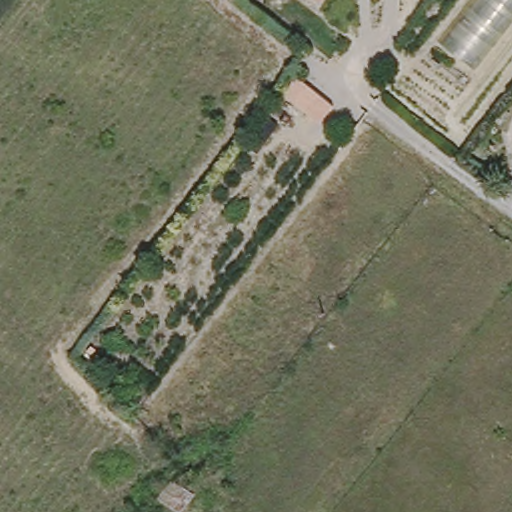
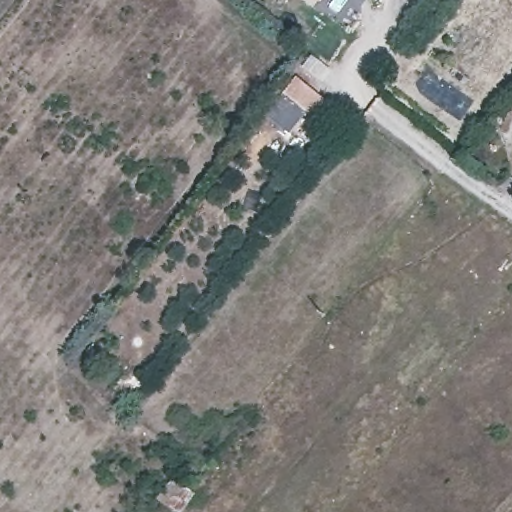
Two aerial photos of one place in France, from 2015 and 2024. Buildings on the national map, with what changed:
demolished [(512,0),(512,29),(477,72),(438,44),(473,0),(512,0)]
unchanged [(298,82),(333,110),(320,126),(285,97),(298,82)]
unchanged [(193,496),(181,512),(175,512),(159,499),(173,480),(193,496)]

